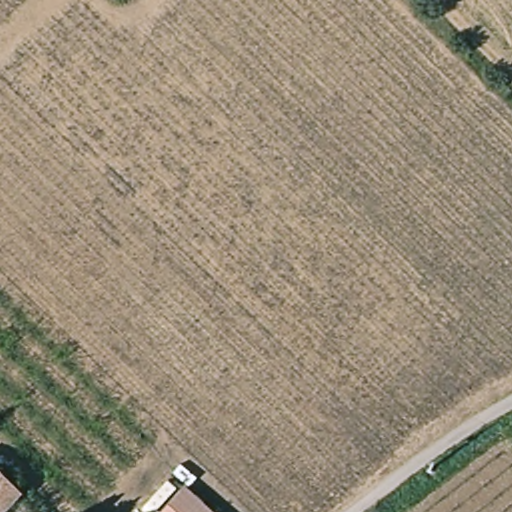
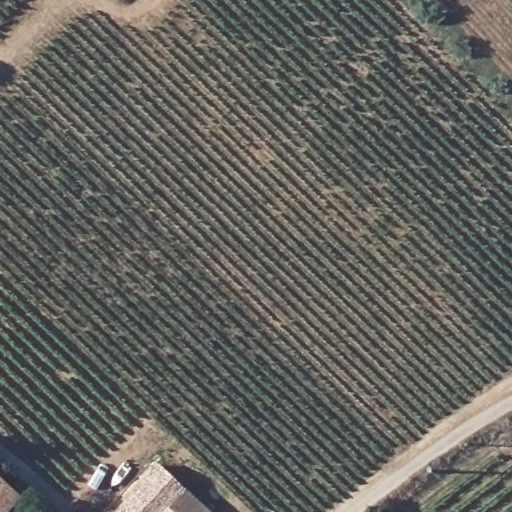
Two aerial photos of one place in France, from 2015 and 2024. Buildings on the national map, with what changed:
new [(116,512),(157,464),(188,487),(165,512),(116,512)]
unchanged [(5,512),(0,512),(0,478),(20,496),(5,512)]
unchanged [(165,512),(188,487),(216,512),(165,512)]

